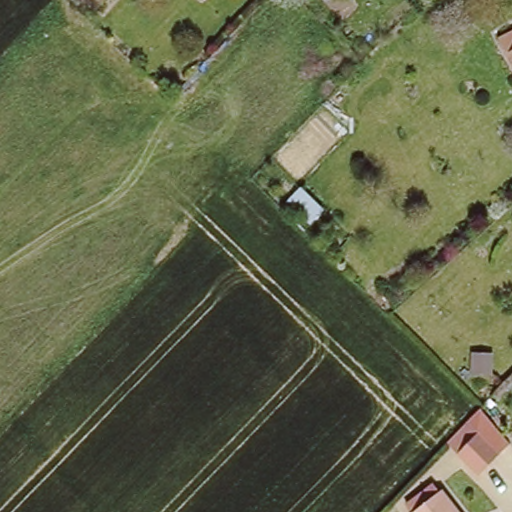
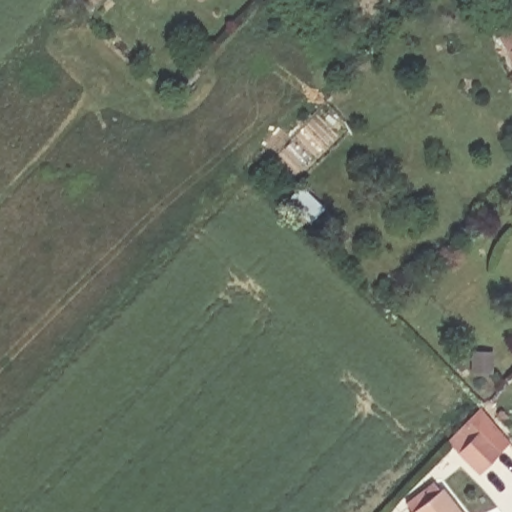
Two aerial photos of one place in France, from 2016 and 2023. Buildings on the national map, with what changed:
unchanged [(507,35),(512,32),(512,42),(507,35)]
unchanged [(300,187),(323,209),(310,224),(286,204),(300,187)]
unchanged [(480,477),(459,456),(448,445),(469,423),(480,434),(501,455),(480,477)]
unchanged [(435,492),(455,512),(414,512),(435,492)]

